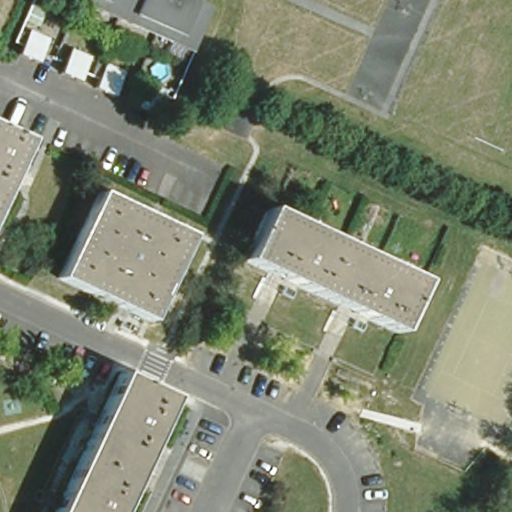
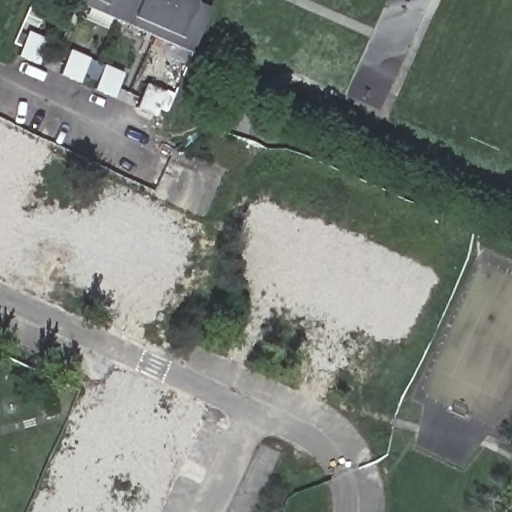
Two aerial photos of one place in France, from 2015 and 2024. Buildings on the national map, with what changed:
unchanged [(114,4),(105,0),(116,0),(139,0),(164,0),(210,0),(193,39),(155,21),(133,12),(114,4)]
unchanged [(20,25),(26,10),(49,19),(37,46),(22,40),(15,36),(20,25)]
unchanged [(72,33),(95,41),(83,66),(63,58),(72,33)]
unchanged [(130,55),(119,79),(105,74),(96,70),(106,44),(114,47),(130,55)]
unchanged [(139,92),(148,66),(170,75),(165,91),(160,100),(139,92)]
demolished [(22,143),(15,160),(9,171),(2,185),(0,191),(0,133),(22,143)]
demolished [(150,326),(57,284),(97,199),(190,241),(150,326)]
demolished [(356,316),(243,261),(267,210),(270,210),(376,260),(356,316)]
demolished [(418,282),(392,335),(365,321),(356,316),(376,260),(418,282)]
demolished [(114,386),(117,378),(171,403),(120,512),(54,512),(107,398),(114,386)]

